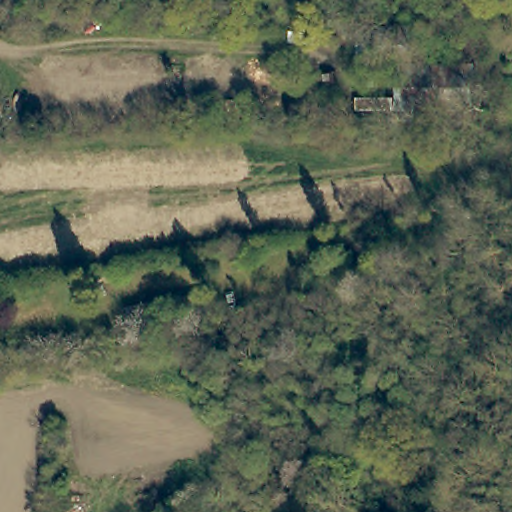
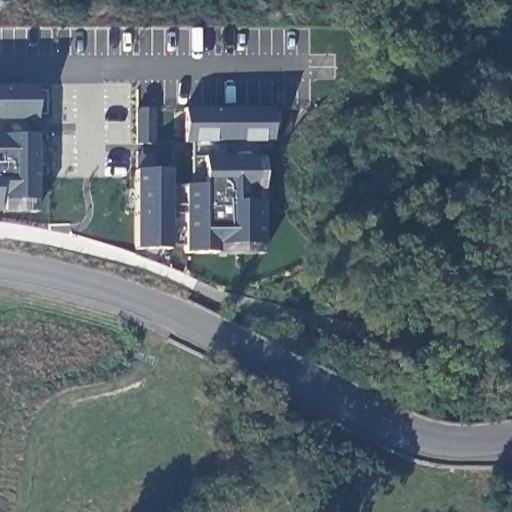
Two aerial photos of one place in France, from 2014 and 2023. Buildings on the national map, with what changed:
unchanged [(410,34),(410,67),(360,68),(360,35),(410,34)]
new [(35,121),(21,121),(23,135),(35,136),(35,212),(0,211),(0,85),(32,86),(35,121)]
new [(271,141),(259,141),(262,155),(262,252),(185,252),(185,245),(167,245),(168,249),(136,249),(136,171),(168,170),(169,185),(192,185),(190,140),(184,140),(184,107),(271,107),(271,141)]
demolished [(127,327),(121,307),(187,293),(190,317),(127,327)]

